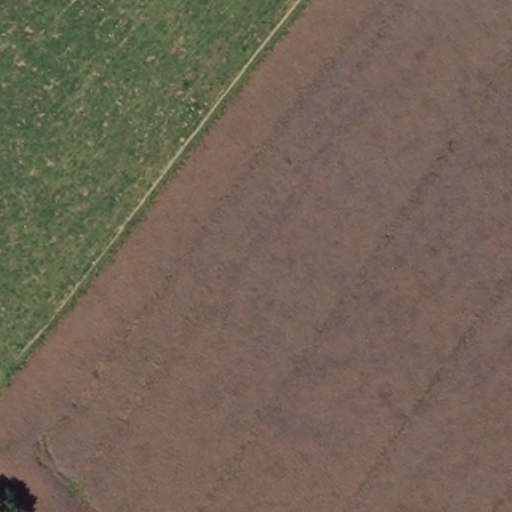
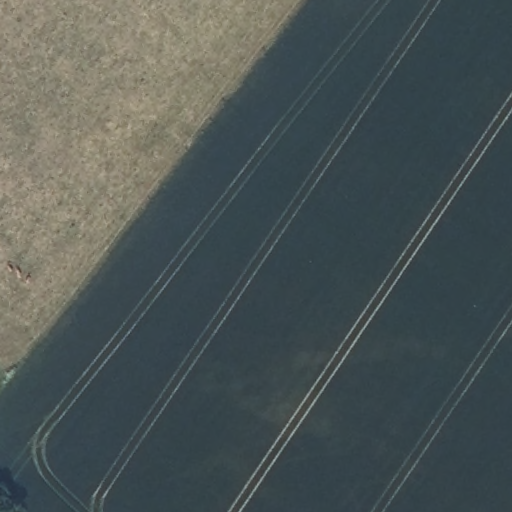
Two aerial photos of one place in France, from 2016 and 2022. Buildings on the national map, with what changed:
[]

